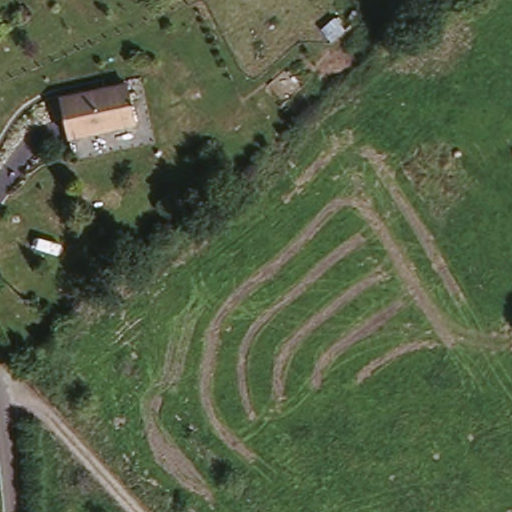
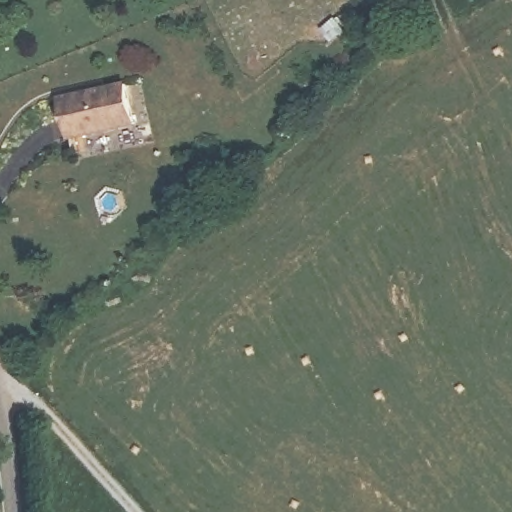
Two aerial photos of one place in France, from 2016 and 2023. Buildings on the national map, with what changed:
unchanged [(58,101),(129,82),(140,123),(69,143),(58,101)]

